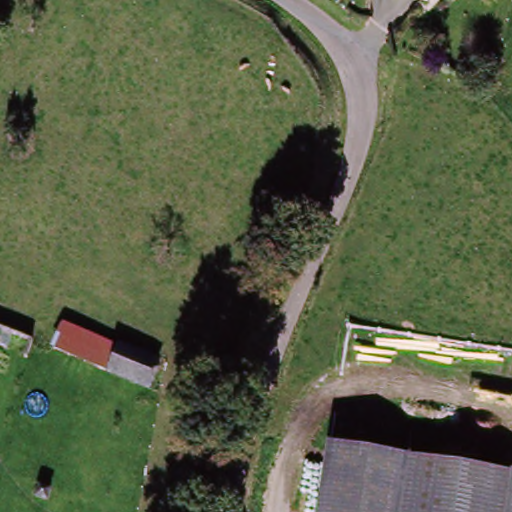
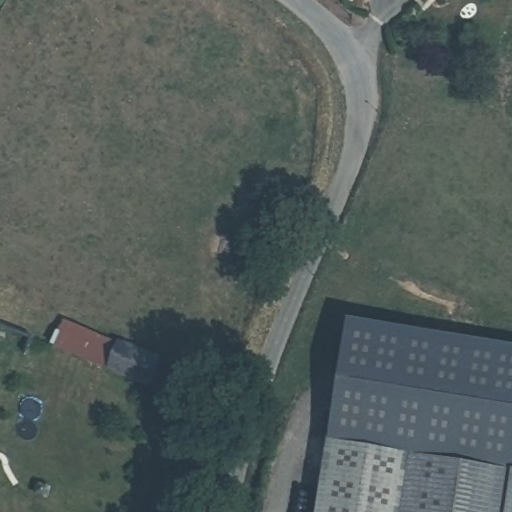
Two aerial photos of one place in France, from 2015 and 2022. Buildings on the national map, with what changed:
new [(512,348),(512,475),(509,475),(407,461),(329,448),(349,322),(512,348)]
unchanged [(107,372),(49,348),(58,325),(116,347),(107,372)]
unchanged [(118,344),(149,357),(139,386),(107,372),(116,347),(118,344)]
unchanged [(319,512),(329,448),(407,461),(399,512),(319,512)]
unchanged [(509,475),(504,512),(399,512),(407,461),(509,475)]
unchanged [(512,475),(512,512),(504,512),(509,475),(512,475)]

